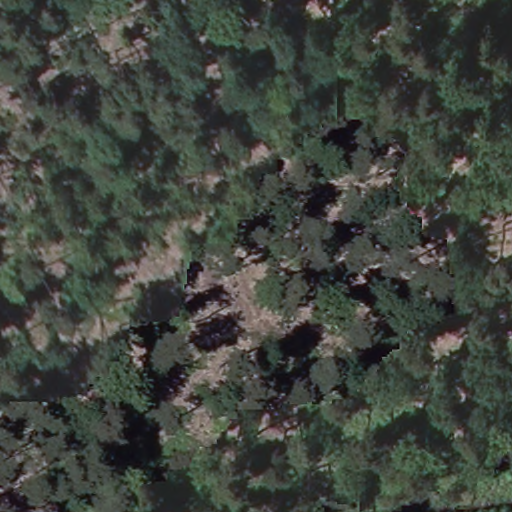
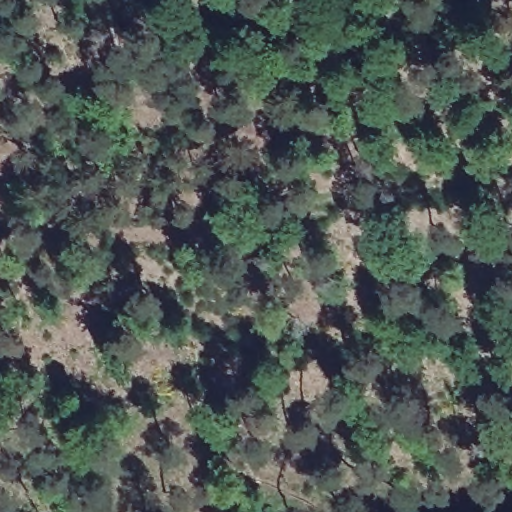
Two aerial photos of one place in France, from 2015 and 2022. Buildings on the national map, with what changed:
[]

